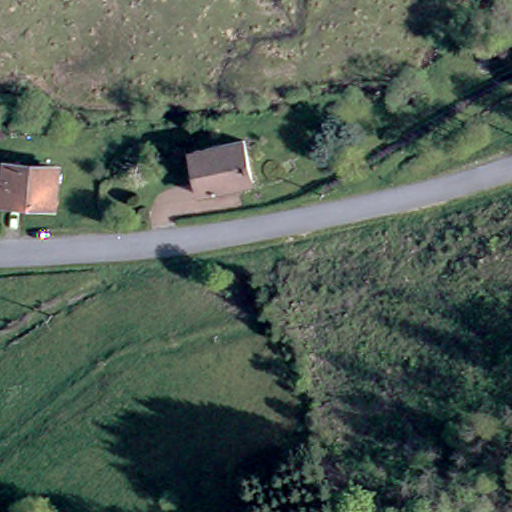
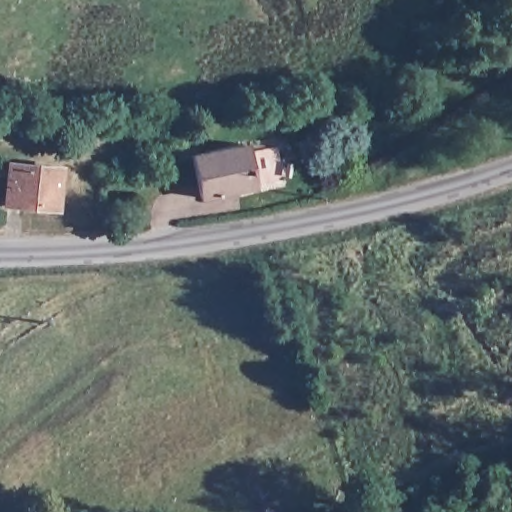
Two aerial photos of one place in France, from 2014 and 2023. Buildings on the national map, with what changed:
unchanged [(190,157),(244,146),(251,194),(197,204),(190,157)]
unchanged [(3,168),(55,161),(57,204),(5,207),(3,168)]

